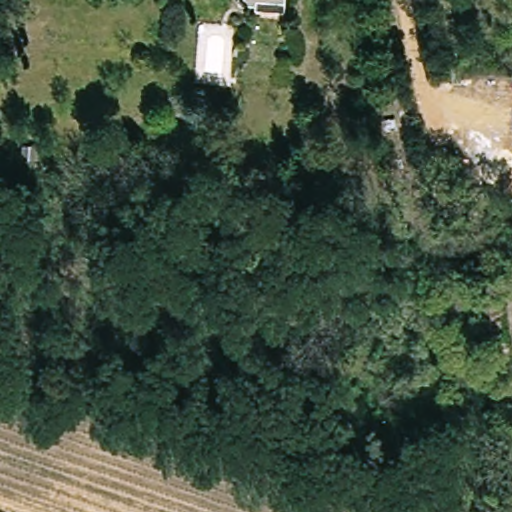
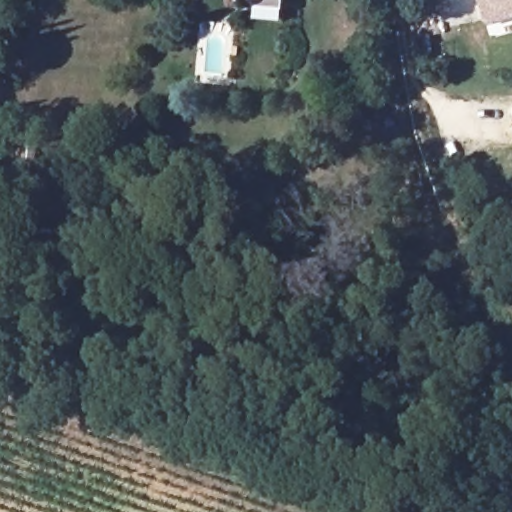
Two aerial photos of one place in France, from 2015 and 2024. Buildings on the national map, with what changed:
unchanged [(293,4),(265,2),(265,7),(244,5),(244,0),(293,0),(293,4)]
new [(489,29),(480,0),(512,0),(512,22),(489,29)]

